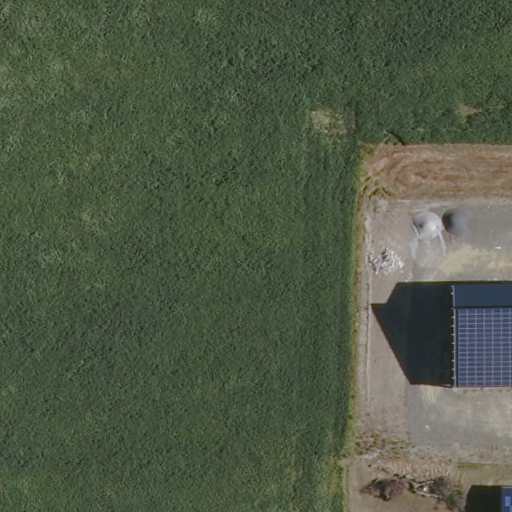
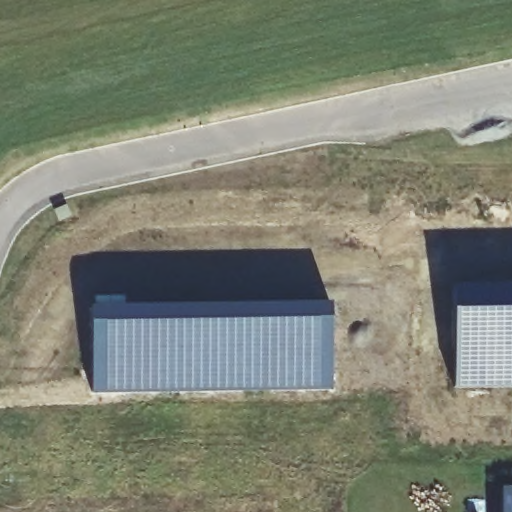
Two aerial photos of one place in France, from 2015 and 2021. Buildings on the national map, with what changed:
unchanged [(455,391),(452,288),(512,287),(512,390),(455,391)]
new [(91,308),(332,304),(332,389),(92,395),(91,308)]
unchanged [(502,512),(502,489),(512,489),(512,512),(502,512)]

